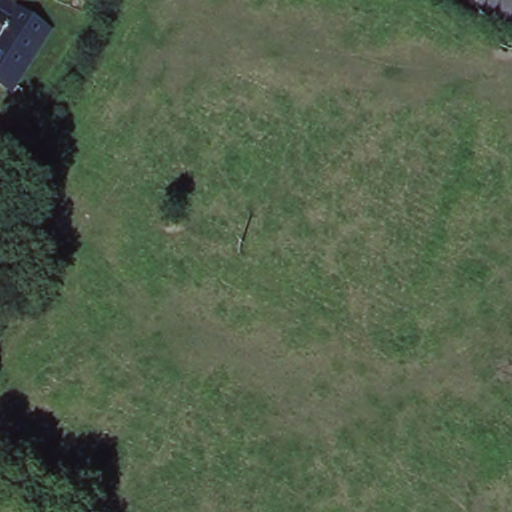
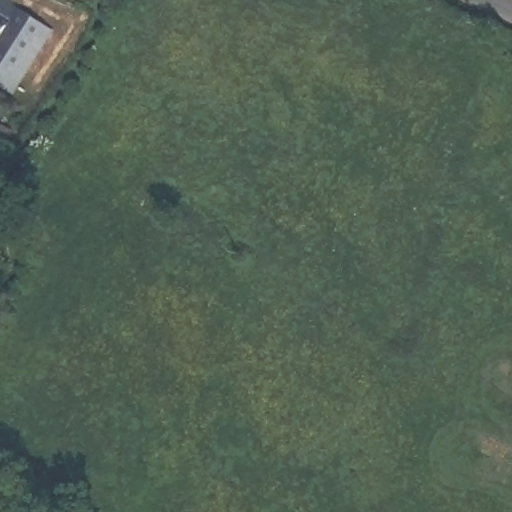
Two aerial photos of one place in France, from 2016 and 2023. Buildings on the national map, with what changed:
unchanged [(13,90),(0,81),(0,0),(8,0),(51,26),(13,90)]

